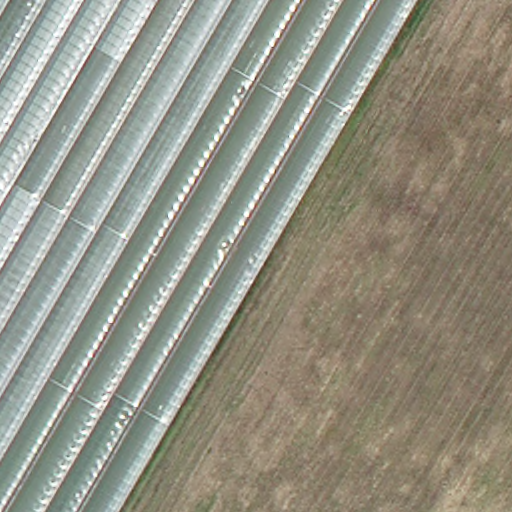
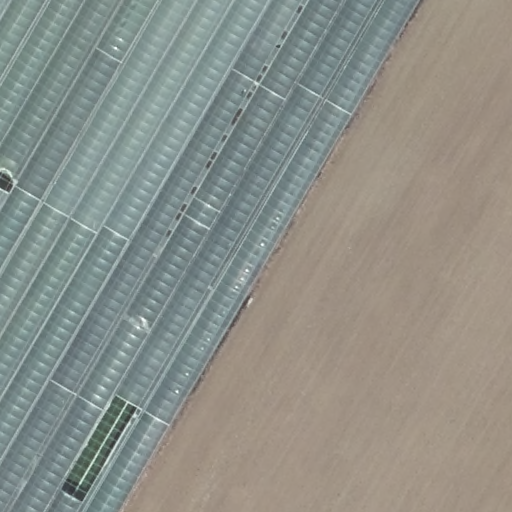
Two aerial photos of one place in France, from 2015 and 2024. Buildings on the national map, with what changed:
unchanged [(0,0),(413,0),(114,512),(0,512),(0,0)]

